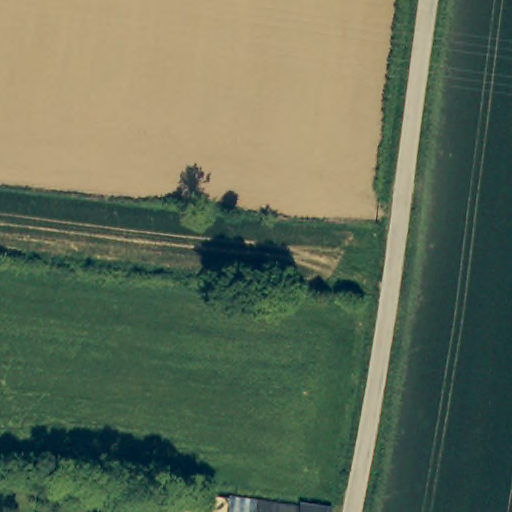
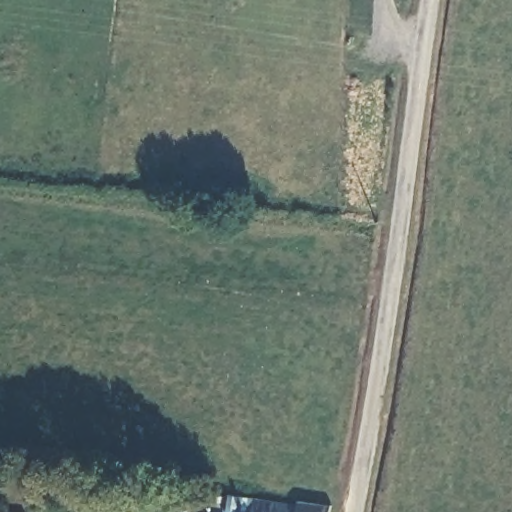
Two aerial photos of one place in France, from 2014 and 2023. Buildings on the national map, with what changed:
unchanged [(300,500),(321,502),(334,502),(332,512),(257,512),(259,500),(300,506),(300,500)]
unchanged [(248,512),(233,512),(234,510),(248,512)]

